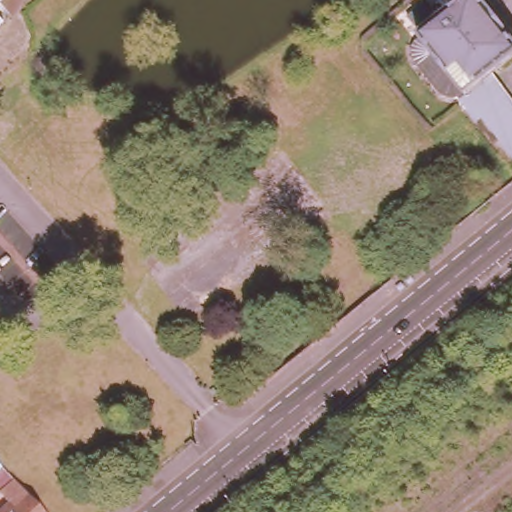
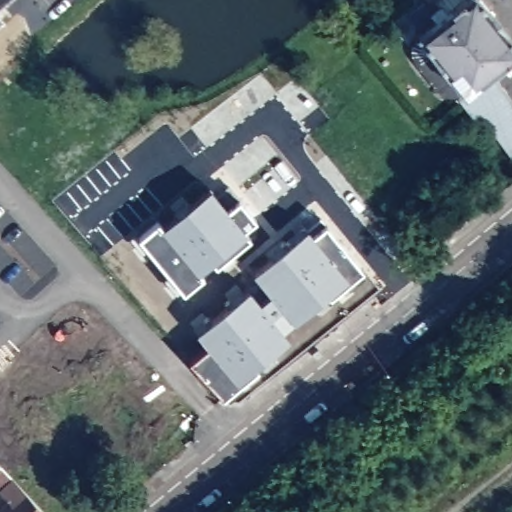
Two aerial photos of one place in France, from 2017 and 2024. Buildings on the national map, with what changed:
unchanged [(417,32),(438,16),(460,0),(484,0),(512,39),(512,57),(490,73),(512,103),(512,159),(479,115),(472,120),(461,105),(455,97),(443,94),(435,91),(410,55),(410,43),(420,36),(417,32)]
unchanged [(460,0),(438,16),(429,5),(436,0),(460,0)]
unchanged [(0,23),(0,10),(6,17),(0,23)]
new [(157,221),(163,228),(210,188),(216,196),(228,186),(237,200),(257,222),(245,231),(247,233),(245,235),(250,239),(215,268),(211,262),(198,272),(205,278),(183,294),(137,238),(157,221)]
new [(306,229),(320,218),(325,225),(363,272),(330,299),(327,295),(293,324),(283,333),(290,341),(255,368),(258,371),(222,400),(190,361),(206,348),(195,335),(248,290),(259,303),(269,295),(252,274),(306,229)]
unchanged [(0,467),(0,461),(5,465),(0,467)]
unchanged [(0,490),(0,470),(50,512),(0,512),(0,505),(9,497),(0,490)]

